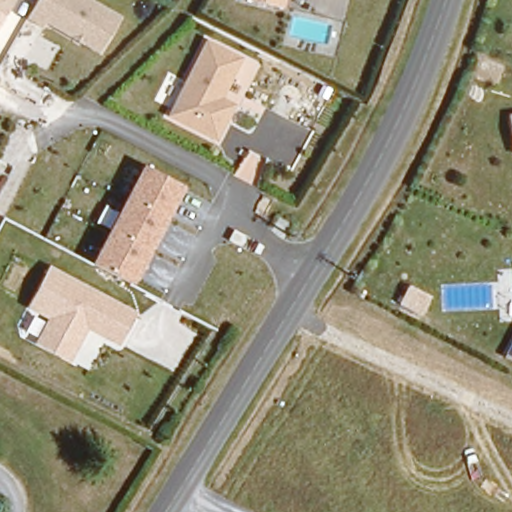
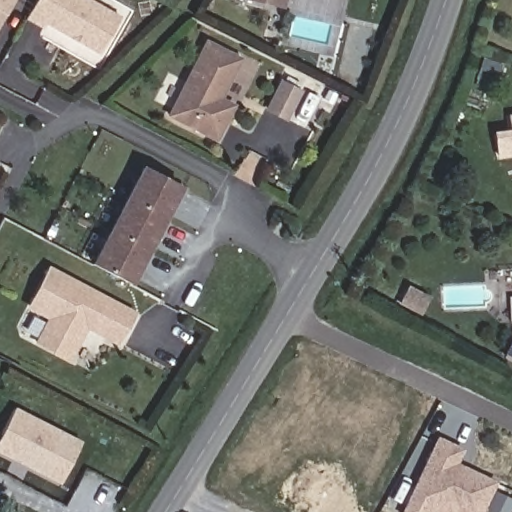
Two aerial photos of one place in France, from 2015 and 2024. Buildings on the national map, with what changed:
unchanged [(7,15),(0,11),(0,0),(16,0),(7,15)]
unchanged [(122,18),(102,54),(48,25),(44,30),(25,19),(37,0),(91,0),(122,18)]
unchanged [(284,9),(246,0),(287,0),(284,9)]
unchanged [(244,57),(224,97),(238,104),(218,141),(167,118),(205,38),(244,57)]
new [(284,82),(302,91),(287,120),(270,111),(284,82)]
unchanged [(512,114),(512,126),(510,114),(512,114)]
unchanged [(185,186),(134,284),(91,263),(143,165),(185,186)]
unchanged [(139,312),(120,345),(88,330),(70,361),(36,343),(48,319),(29,308),(49,265),(139,312)]
unchanged [(436,300),(429,315),(411,306),(418,291),(436,300)]
unchanged [(512,339),(512,360),(503,355),(512,339)]
new [(82,441),(59,484),(0,454),(0,435),(14,406),(82,441)]
new [(464,450),(456,468),(468,474),(470,470),(497,483),(484,512),(434,512),(430,510),(430,512),(406,512),(440,438),(464,450)]

